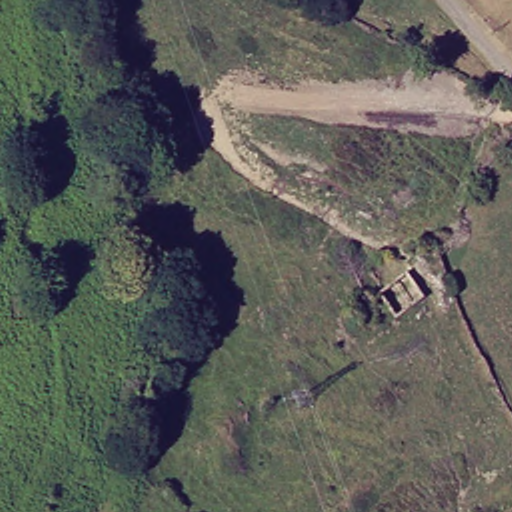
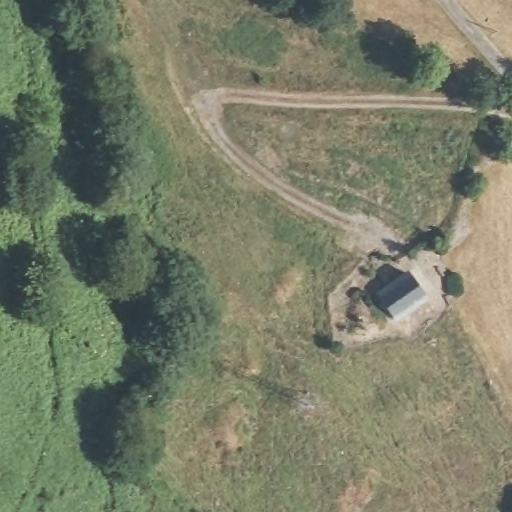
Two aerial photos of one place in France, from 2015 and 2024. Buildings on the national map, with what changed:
demolished [(374,298),(408,273),(428,298),(397,319),(374,298)]

